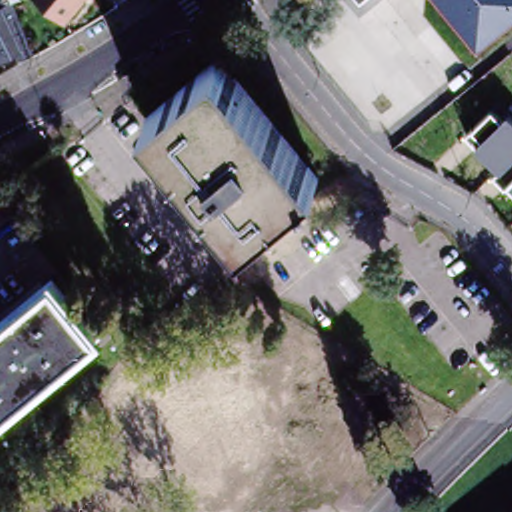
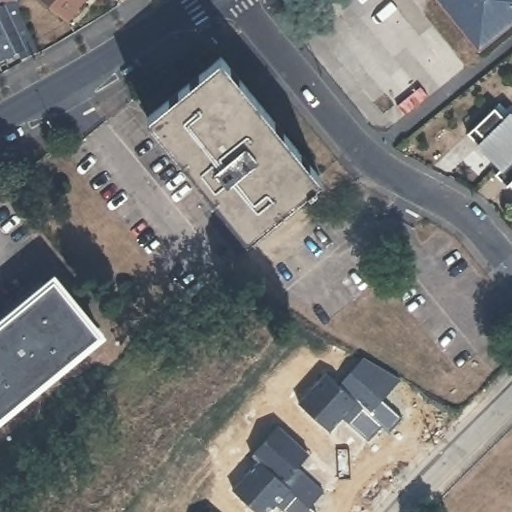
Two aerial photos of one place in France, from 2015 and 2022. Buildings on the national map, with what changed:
unchanged [(25,61),(23,56),(10,63),(7,58),(0,61),(0,1),(2,6),(9,4),(16,0),(21,13),(36,46),(40,54),(36,56),(25,61)]
unchanged [(43,0),(87,0),(69,22),(43,0)]
unchanged [(480,49),(440,0),(512,0),(512,22),(480,49)]
unchanged [(219,65),(319,188),(312,194),(315,197),(308,202),(306,199),(297,206),(303,214),(300,216),(294,209),(245,249),(144,126),(219,65)]
unchanged [(505,116),(510,111),(512,113),(512,188),(496,172),(499,170),(475,146),(479,142),(470,133),(495,108),(505,116)]
unchanged [(373,199),(378,204),(373,207),(370,202),(373,199)]
unchanged [(99,337),(0,418),(0,325),(53,282),(99,337)]
new [(344,425),(338,419),(326,433),(295,405),(321,376),(334,388),(359,360),(396,382),(378,402),(399,419),(385,434),(378,428),(365,443),(344,425)]
new [(278,512),(272,507),(267,512),(251,512),(229,492),(255,463),(248,457),(275,428),(305,456),(293,469),(300,474),(320,494),(306,509),(309,512),(279,512),(278,512)]

